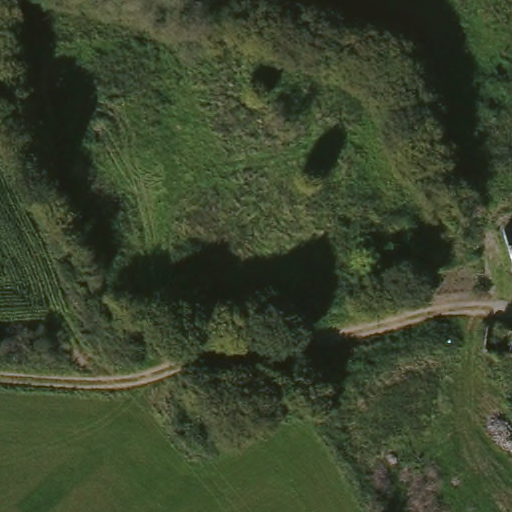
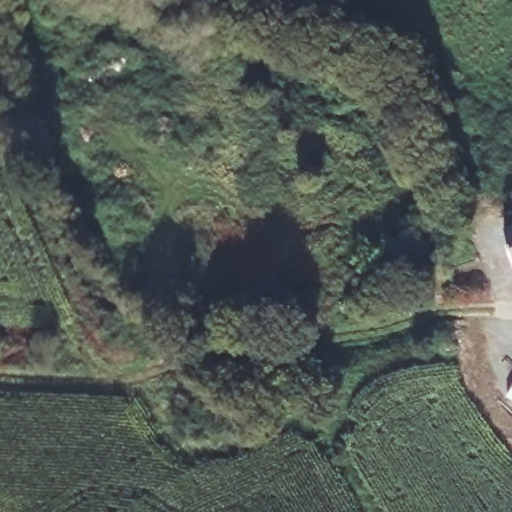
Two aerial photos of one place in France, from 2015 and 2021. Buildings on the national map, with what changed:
unchanged [(503,269),(497,222),(512,221),(512,268),(503,269)]
unchanged [(484,350),(488,326),(512,331),(512,356),(484,350)]
unchanged [(498,393),(504,387),(512,377),(512,406),(498,393)]

